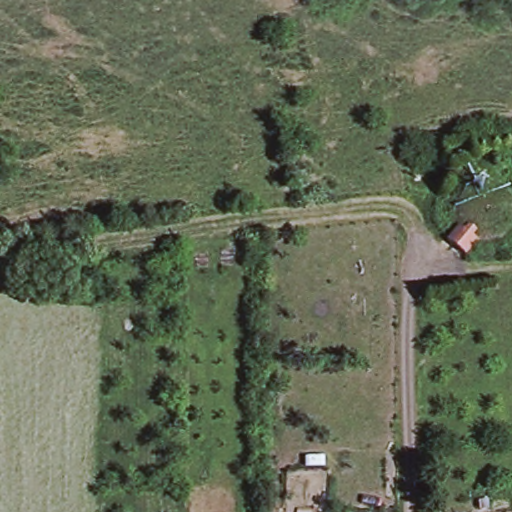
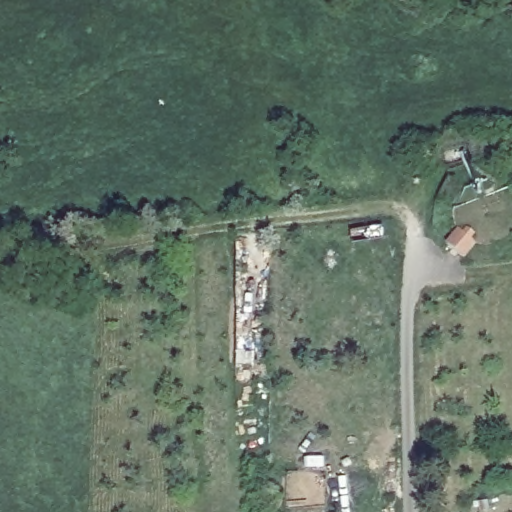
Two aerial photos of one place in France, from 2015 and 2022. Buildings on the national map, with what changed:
[]

